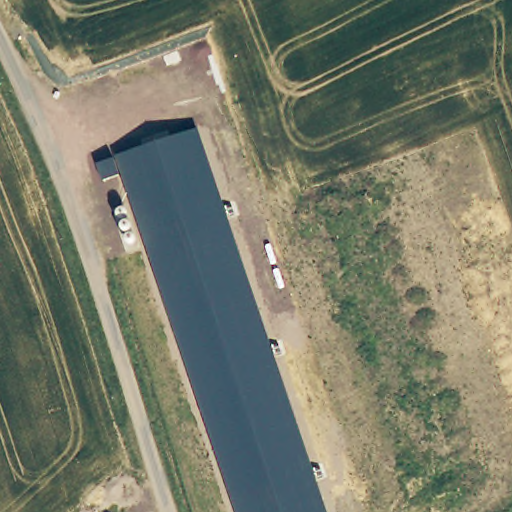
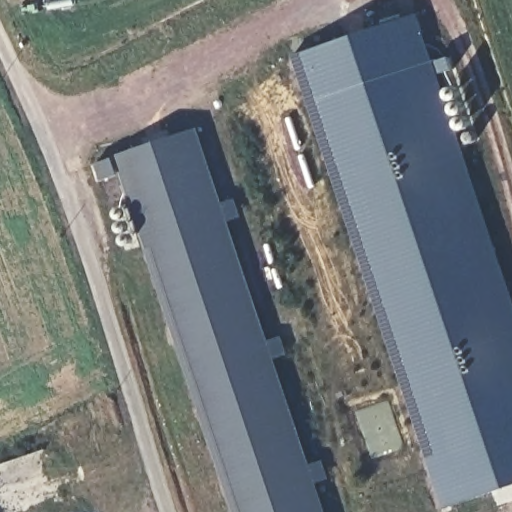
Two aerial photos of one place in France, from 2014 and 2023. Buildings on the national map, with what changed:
new [(291,55),(417,12),(512,296),(512,487),(446,510),(291,55)]
unchanged [(116,156),(197,128),(327,512),(235,512),(116,156)]
unchanged [(102,180),(97,163),(112,158),(118,174),(102,180)]

